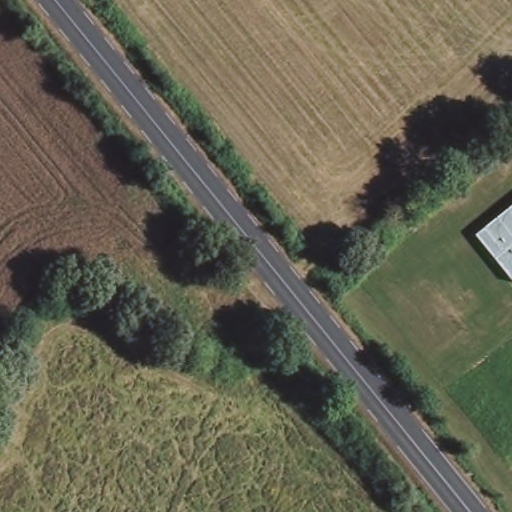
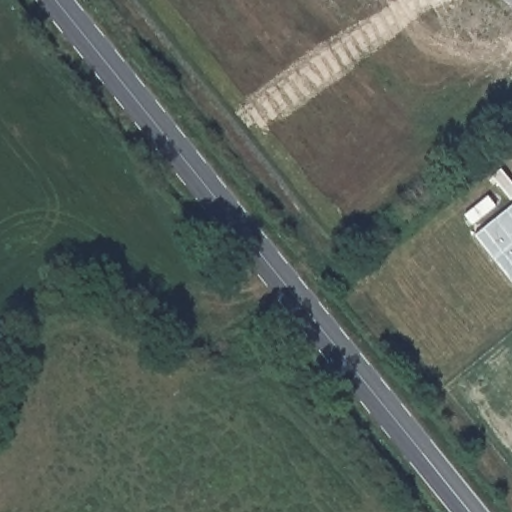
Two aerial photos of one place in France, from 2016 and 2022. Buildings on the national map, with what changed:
unchanged [(475,235),(512,206),(512,282),(511,282),(475,235)]

